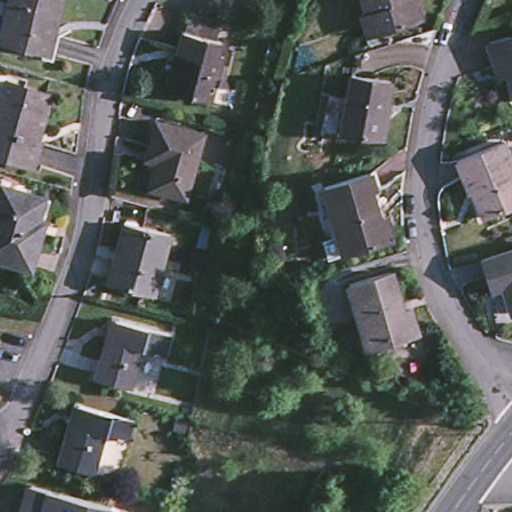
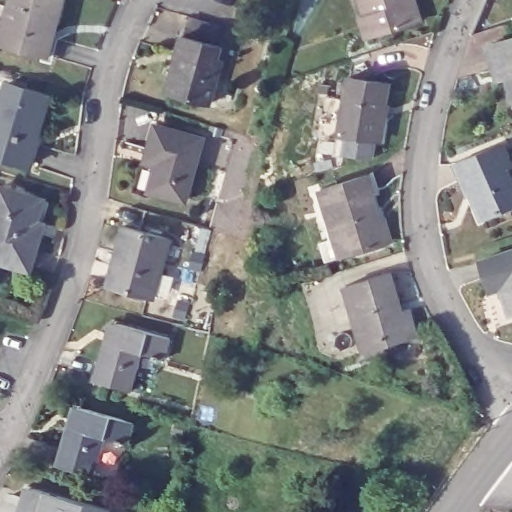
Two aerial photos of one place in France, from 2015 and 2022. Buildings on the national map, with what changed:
unchanged [(48,24),(42,49),(0,38),(0,23),(6,0),(59,0),(53,25),(48,24)]
unchanged [(364,30),(357,9),(362,8),(360,0),(415,0),(420,13),(364,30)]
unchanged [(179,49),(175,49),(180,30),(224,41),(209,98),(169,88),(179,49)]
unchanged [(512,31),(512,96),(502,62),(493,64),(485,39),(512,31)]
unchanged [(392,83),(386,109),(389,111),(383,139),(338,129),(350,74),(392,83)]
unchanged [(44,95),(31,140),(36,141),(31,161),(0,153),(0,92),(3,84),(44,95)]
unchanged [(151,125),(199,139),(182,199),(146,189),(155,158),(143,155),(151,125)]
unchanged [(473,193),(470,187),(464,190),(449,161),(500,138),(509,159),(503,161),(512,181),(512,200),(479,215),(470,195),(473,193)]
unchanged [(369,167),(374,184),(365,188),(373,215),(383,213),(390,235),(339,252),(317,184),(369,167)]
unchanged [(42,197),(32,230),(39,232),(29,266),(0,258),(0,184),(42,197)]
unchanged [(120,221),(167,234),(150,294),(104,280),(120,221)]
unchanged [(507,309),(499,283),(488,286),(479,255),(512,245),(512,308),(507,309)]
unchanged [(387,273),(397,306),(407,303),(415,329),(363,343),(347,285),(387,273)]
unchanged [(167,333),(161,354),(137,348),(128,384),(92,374),(107,317),(167,333)]
unchanged [(130,414),(124,436),(101,430),(91,467),(54,457),(65,416),(72,418),(76,399),(130,414)]
unchanged [(83,496),(78,512),(56,512),(15,512),(19,499),(24,499),(28,481),(83,496)]

